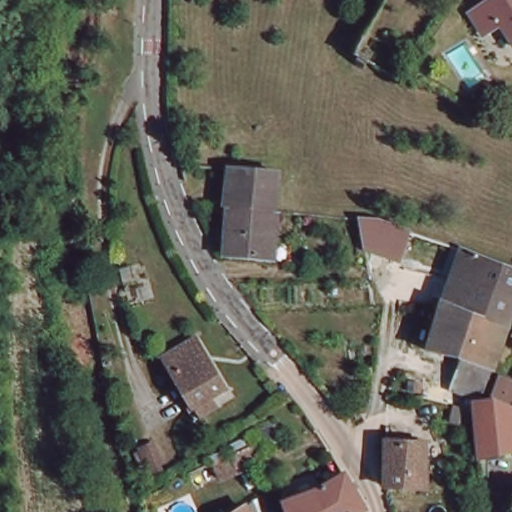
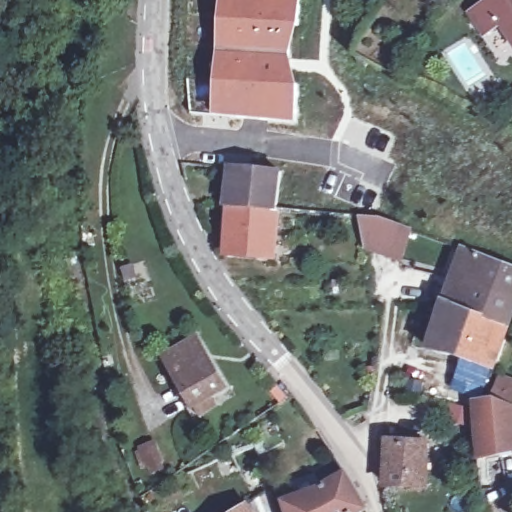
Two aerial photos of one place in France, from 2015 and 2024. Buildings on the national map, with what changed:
new [(304,0),(302,24),(295,54),(302,87),(300,125),(253,122),(214,117),(220,0),(304,0)]
unchanged [(488,36),(476,16),(499,1),(499,0),(512,0),(512,38),(505,26),(488,36)]
unchanged [(236,167),(244,168),(282,172),(278,210),(233,207),(236,167)]
unchanged [(278,210),(274,257),(228,253),(233,207),(278,210)]
unchanged [(398,246),(397,246),(395,251),(372,243),(375,219),(380,219),(403,228),(398,246)]
unchanged [(453,282),(458,284),(467,256),(468,254),(512,271),(512,324),(510,331),(445,306),(453,282)]
unchanged [(334,282),(337,282),(337,285),(334,285),(334,282)]
unchanged [(454,391),(463,366),(460,365),(443,360),(436,358),(430,355),(445,306),(510,331),(496,375),(492,374),(480,402),(454,391)]
unchanged [(202,415),(196,405),(194,406),(166,357),(196,339),(225,388),(211,397),(217,406),(202,415)]
unchanged [(368,368),(372,368),(372,372),(368,372),(368,368)]
unchanged [(512,390),(512,452),(481,458),(479,443),(480,437),(480,436),(486,417),(491,405),(494,405),(501,385),(512,390)]
unchanged [(387,441),(428,442),(428,487),(386,486),(387,441)]
unchanged [(169,475),(148,483),(137,452),(160,442),(169,475)]
unchanged [(256,466),(210,483),(203,464),(247,446),(256,466)]
unchanged [(287,502),(322,489),(347,475),(367,509),(362,512),(290,512),(287,502)]
unchanged [(474,491),(479,491),(479,498),(475,498),(474,491)]
unchanged [(238,511),(247,505),(252,512),(237,512),(238,511)]

